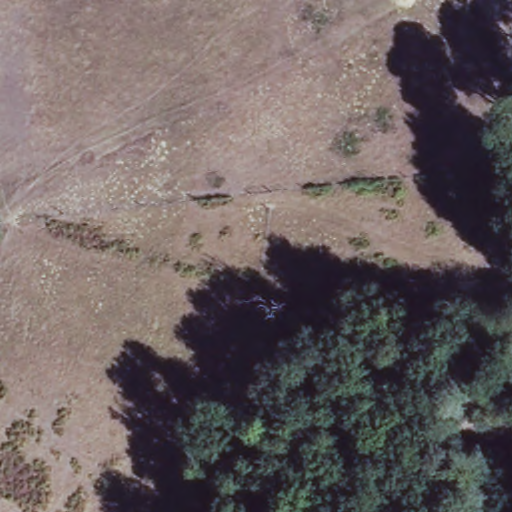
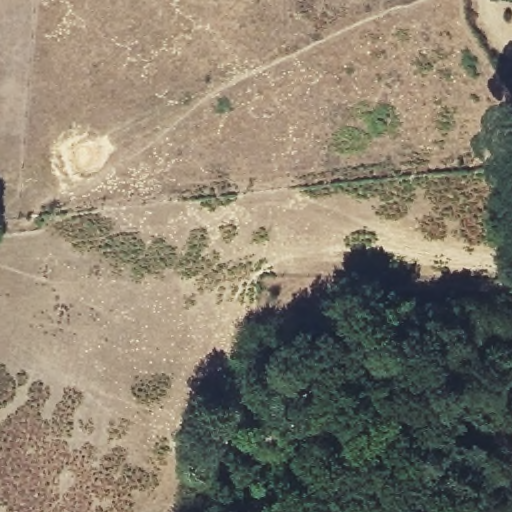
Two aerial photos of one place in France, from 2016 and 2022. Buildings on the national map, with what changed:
unchanged [(274,361),(278,356),(278,350),(287,340),(297,341),(308,351),(303,363),(309,368),(295,385),(278,372),(282,368),(274,361)]

